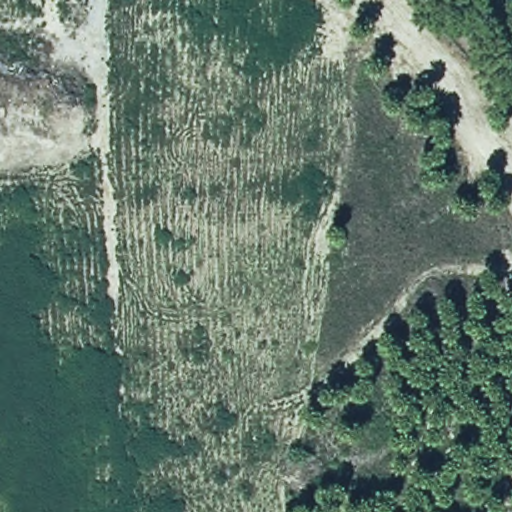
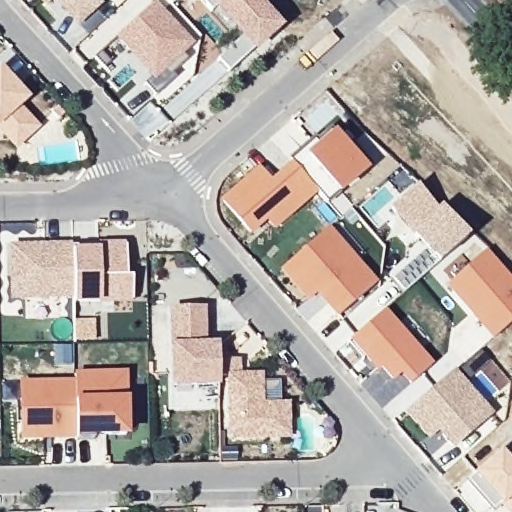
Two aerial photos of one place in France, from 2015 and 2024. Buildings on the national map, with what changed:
new [(75,24),(65,14),(57,20),(38,0),(89,0),(94,5),(75,24)]
new [(155,0),(195,42),(155,83),(115,39),(155,0)]
new [(13,84),(22,95),(14,101),(33,123),(14,140),(0,126),(0,70),(9,79),(13,84)]
new [(325,99),(338,113),(317,133),(304,120),(325,99)]
new [(335,196),(303,157),(334,131),(367,171),(335,196)]
new [(436,264),(402,295),(389,280),(422,250),(408,236),(387,212),(415,187),(434,211),(439,206),(467,236),(436,264)]
new [(376,285),(335,318),(315,296),(305,304),(277,271),(327,229),(376,285)]
new [(125,277),(130,277),(131,305),(100,306),(70,306),(70,302),(7,302),(7,245),(70,244),(70,249),(97,248),(97,244),(125,244),(125,277)]
new [(490,340),(444,287),(484,252),(512,284),(512,321),(490,340)]
new [(169,306),(199,305),(199,343),(214,342),(215,358),(215,372),(215,380),(170,381),(169,306)]
new [(431,365),(407,386),(398,376),(390,383),(379,370),(375,373),(345,342),(384,311),(431,365)]
new [(215,358),(235,357),(235,372),(257,371),(257,402),(282,402),(283,432),(225,433),(225,372),(215,372),(215,358)]
new [(71,436),(71,431),(70,378),(70,370),(120,370),(121,430),(89,430),(89,435),(71,436)]
new [(450,450),(440,440),(434,445),(406,416),(451,375),(489,415),(450,450)]
new [(19,432),(17,380),(70,378),(71,431),(19,432)]
new [(499,450),(512,464),(512,512),(506,512),(472,475),(499,450)]

